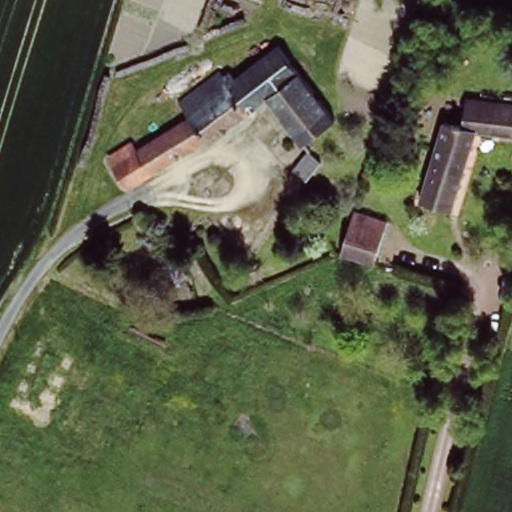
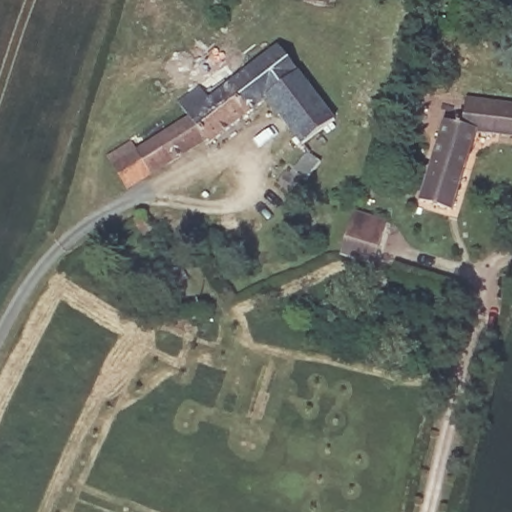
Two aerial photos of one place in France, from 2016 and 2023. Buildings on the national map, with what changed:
unchanged [(157,142),(155,136),(161,132),(163,136),(195,114),(187,100),(210,85),(217,96),(287,44),(345,119),(326,134),(332,142),(322,150),(330,161),(313,175),(302,161),(317,150),(277,98),(220,142),(217,138),(162,171),(140,184),(118,154),(140,140),(147,150),(157,142)]
unchanged [(461,121),(468,98),(512,103),(512,134),(477,131),(452,207),(421,197),(448,116),(461,121)]
unchanged [(374,263),(340,252),(354,205),(388,216),(374,263)]

